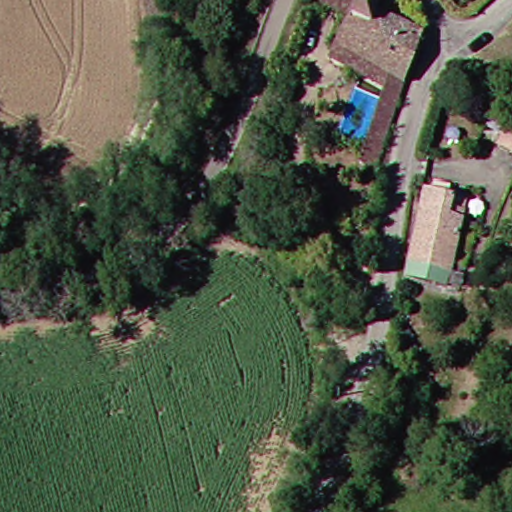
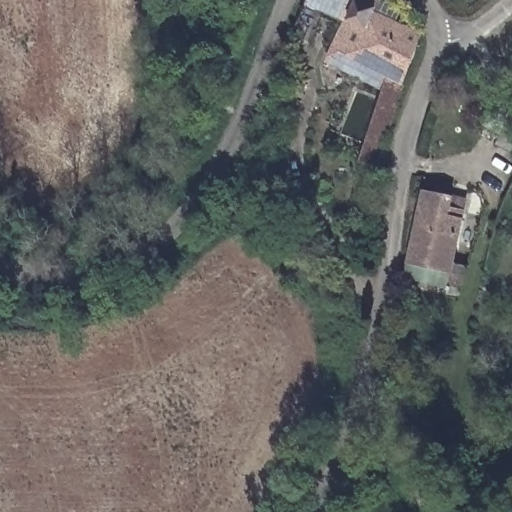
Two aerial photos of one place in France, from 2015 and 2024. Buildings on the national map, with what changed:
unchanged [(300,0),(372,0),(367,15),(418,35),(395,80),(393,85),(379,77),(330,52),(335,37),(294,15),(300,0)]
unchanged [(375,92),(373,91),(379,77),(393,85),(398,87),(372,160),(350,164),(375,92)]
unchanged [(447,210),(462,214),(457,240),(447,287),(408,280),(419,203),(447,210)]

